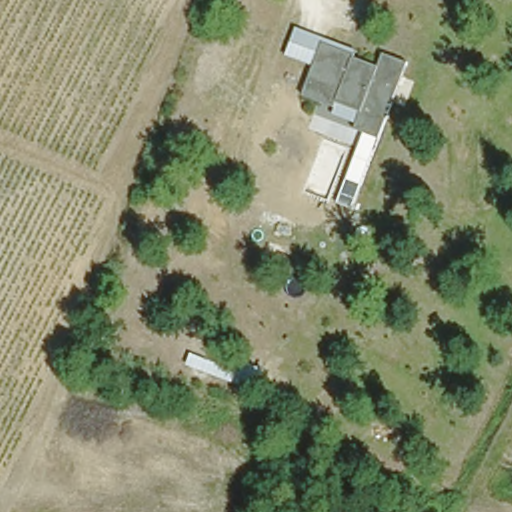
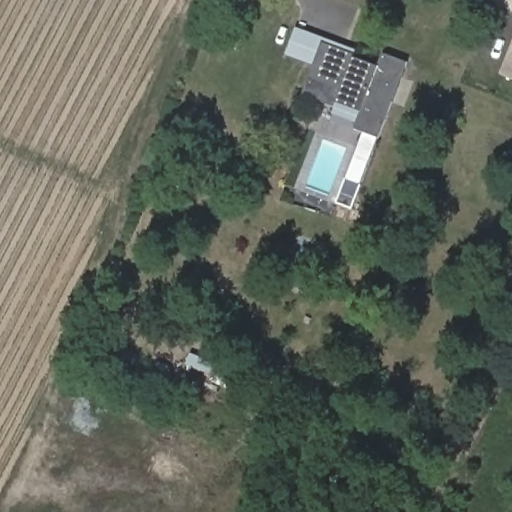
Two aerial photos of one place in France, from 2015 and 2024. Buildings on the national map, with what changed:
unchanged [(379,139),(356,130),(357,126),(333,117),(336,109),(304,96),(314,67),(287,57),(296,29),(358,52),(357,60),(379,67),(384,53),(409,63),(379,139)]
new [(499,75),(512,40),(512,80),(499,75)]

